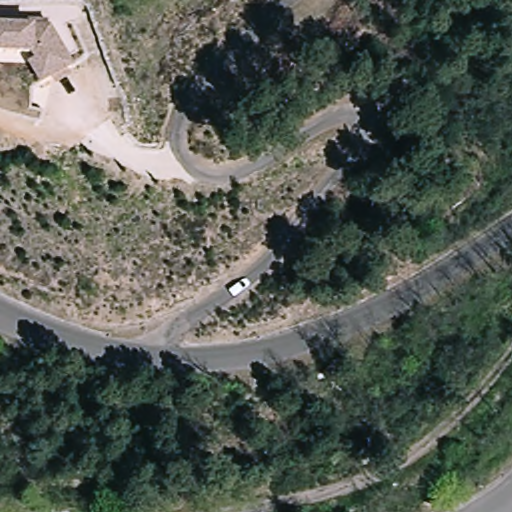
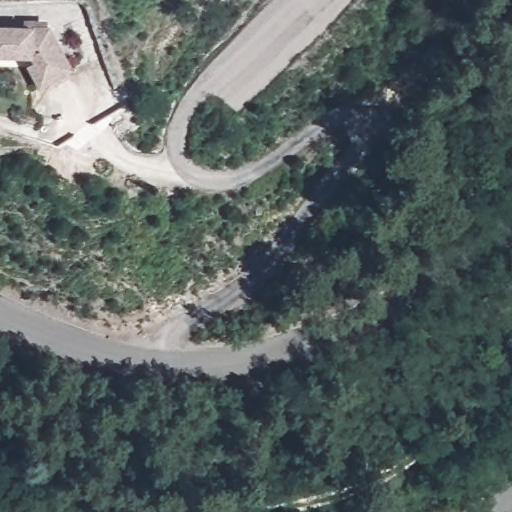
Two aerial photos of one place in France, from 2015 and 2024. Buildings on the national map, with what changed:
unchanged [(37,60),(32,55),(0,54),(0,27),(43,27),(73,54),(55,75),(50,80),(33,65),(37,60)]
unchanged [(320,375),(339,360),(348,371),(329,386),(320,375)]

